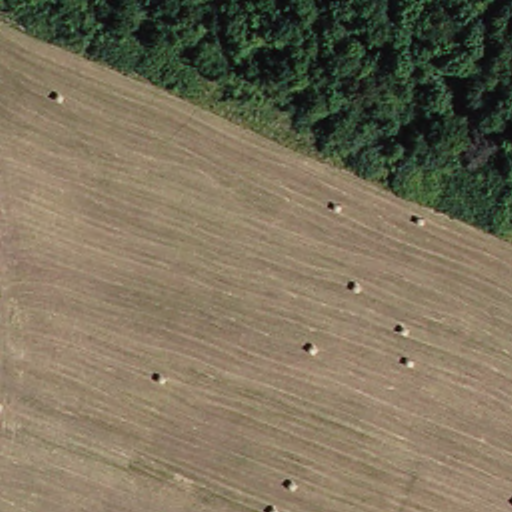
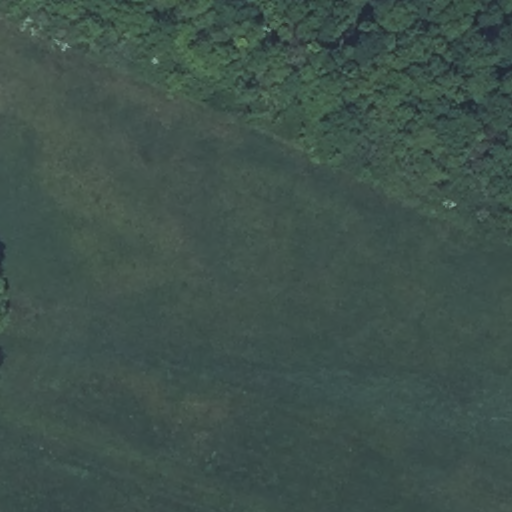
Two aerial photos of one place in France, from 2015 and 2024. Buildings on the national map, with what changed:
[]

